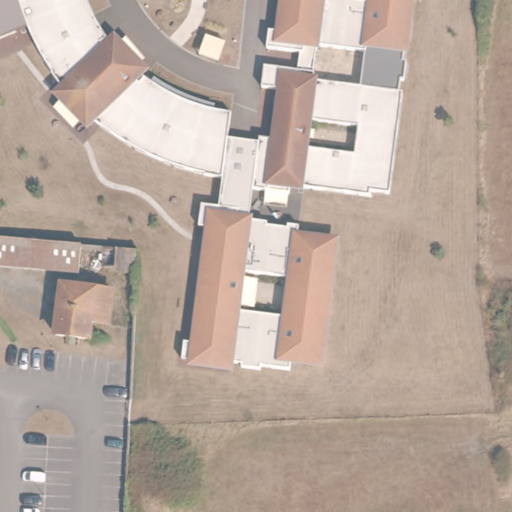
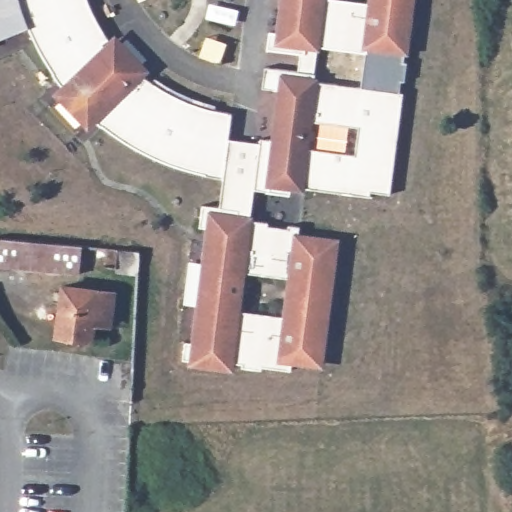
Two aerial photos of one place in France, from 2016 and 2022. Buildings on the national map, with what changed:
unchanged [(96,22),(111,43),(104,49),(108,54),(119,46),(142,72),(134,82),(140,87),(145,81),(153,87),(156,84),(167,91),(165,94),(177,100),(179,97),(192,102),(191,107),(206,111),(208,107),(217,109),(217,114),(235,118),(232,139),(231,150),(227,177),(209,175),(179,167),(155,157),(132,145),(99,121),(91,126),(64,96),(70,90),(55,72),(42,51),(39,45),(35,35),(32,28),(0,42),(0,0),(86,0),(89,7),(96,22)]
unchanged [(380,193),(378,200),(310,191),(311,189),(298,187),(297,196),(258,191),(265,143),(266,138),(281,140),(286,92),(267,90),(270,67),(303,71),(305,54),(272,50),(274,32),(285,34),(289,0),(417,0),(414,21),(417,21),(415,40),(412,40),(408,63),(412,64),(410,82),(406,82),(405,94),(408,94),(395,195),(380,193)]
unchanged [(417,0),(420,0),(420,1),(417,0)]
unchanged [(265,143),(258,191),(257,191),(253,222),(252,225),(244,223),(243,223),(245,211),(227,208),(231,178),(227,177),(231,150),(232,139),(265,143)]
unchanged [(196,342),(206,282),(209,266),(215,229),(205,227),(208,205),(227,208),(245,211),(243,223),(244,223),(252,225),(253,222),(273,225),(273,229),(293,232),(293,229),(305,231),(302,245),(311,246),(311,242),(340,247),(338,259),(342,260),(340,268),(338,278),(335,278),(333,288),(332,298),(335,298),(332,318),(328,317),(325,337),(328,338),(325,357),(322,357),(320,368),(292,363),(290,374),(261,369),(260,372),(241,369),(242,366),(230,363),(231,357),(219,356),(217,365),(182,359),(185,341),(196,342)]
unchanged [(0,270),(0,239),(87,247),(82,277),(0,270)]
unchanged [(116,270),(117,249),(147,252),(145,272),(116,270)]
unchanged [(109,292),(105,325),(91,322),(88,338),(55,335),(60,287),(109,292)]

